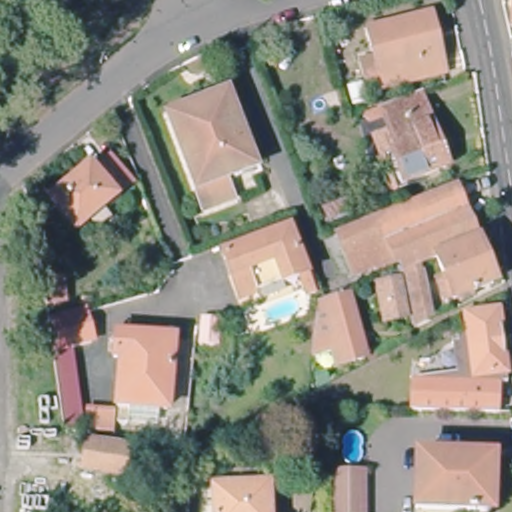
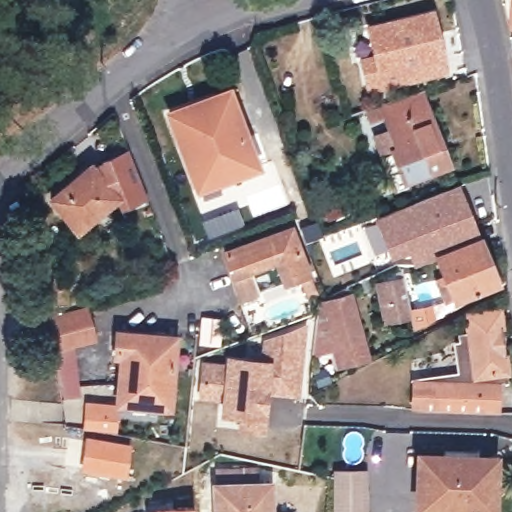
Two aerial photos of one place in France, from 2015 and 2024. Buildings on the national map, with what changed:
unchanged [(372,28),(434,12),(445,56),(443,57),(447,73),(373,91),(366,62),(379,58),(372,28)]
unchanged [(512,16),(512,29),(511,29),(512,16)]
unchanged [(227,170),(235,191),(209,202),(171,112),(187,104),(226,88),(241,125),(255,158),(227,170)]
unchanged [(443,164),(400,181),(388,148),(374,109),(382,106),(418,93),(443,164)]
unchanged [(83,170),(89,177),(106,161),(126,184),(69,235),(44,205),(83,170)]
unchanged [(458,297),(454,290),(446,293),(439,276),(446,272),(438,254),(418,262),(413,261),(391,258),(376,216),(458,185),(474,225),(479,240),(496,280),(458,297)]
demolished [(336,235),(344,231),(362,224),(361,222),(376,216),(391,258),(361,273),(353,277),(336,235)]
unchanged [(232,275),(224,254),(288,229),(304,272),(258,291),(242,297),(232,275)]
unchanged [(382,302),(380,290),(406,286),(402,272),(419,269),(429,321),(414,328),(411,315),(394,318),(386,320),(382,302)]
unchanged [(306,296),(300,279),(307,277),(308,278),(311,277),(316,292),(306,296)]
unchanged [(59,278),(61,300),(45,302),(42,281),(59,278)]
unchanged [(338,350),(314,357),(318,312),(319,306),(319,302),(326,298),(351,287),(353,295),(372,357),(349,363),(342,367),(338,350)]
unchanged [(95,334),(73,340),(57,344),(55,332),(52,312),(88,305),(91,320),(95,334)]
unchanged [(406,402),(406,378),(414,377),(450,373),(447,339),(453,338),(452,330),(464,329),(462,312),(492,310),(500,380),(484,381),(487,406),(487,409),(433,407),(417,407),(405,406),(406,402)]
unchanged [(221,322),(219,348),(199,345),(202,317),(221,322)]
new [(308,323),(300,397),(269,392),(267,421),(266,437),(238,435),(240,417),(220,416),(221,402),(198,400),(202,362),(225,362),(226,357),(260,360),(263,338),(308,323)]
unchanged [(131,413),(121,412),(122,397),(125,351),(116,350),(119,327),(176,330),(171,401),(160,400),(159,415),(131,413)]
unchanged [(85,416),(66,420),(57,344),(73,340),(85,416)]
unchanged [(89,402),(114,405),(112,427),(87,425),(89,402)]
unchanged [(88,463),(90,437),(131,443),(129,467),(88,463)]
unchanged [(416,508),(416,455),(491,456),(490,510),(416,508)]
unchanged [(333,472),(345,473),(364,473),(365,488),(365,512),(331,512),(331,476),(331,473),(333,472)]
unchanged [(212,483),(260,482),(271,482),(273,512),(213,512),(212,483)]
new [(150,512),(150,508),(193,507),(194,512),(144,512),(150,512)]

